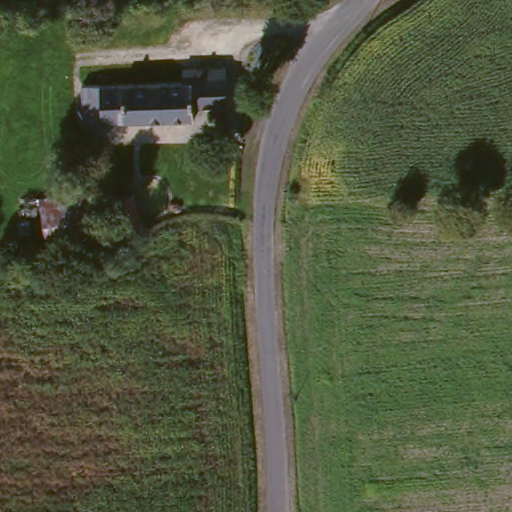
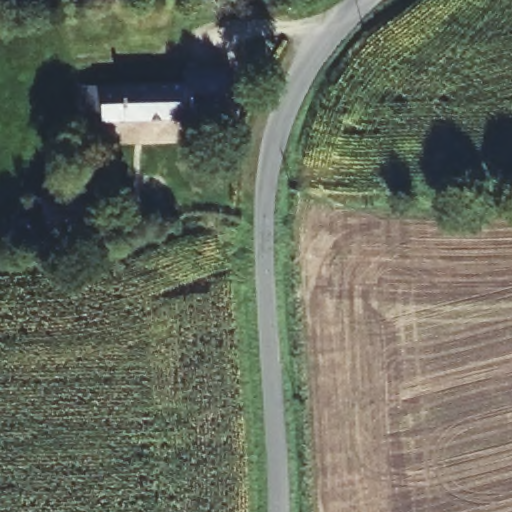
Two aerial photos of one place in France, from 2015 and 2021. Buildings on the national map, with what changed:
unchanged [(185,88),(184,73),(223,72),(225,112),(193,113),(195,125),(102,128),(82,128),(82,91),(101,90),(185,88)]
unchanged [(92,189),(99,238),(49,245),(42,196),(92,189)]
unchanged [(118,201),(133,197),(140,225),(125,229),(118,201)]

